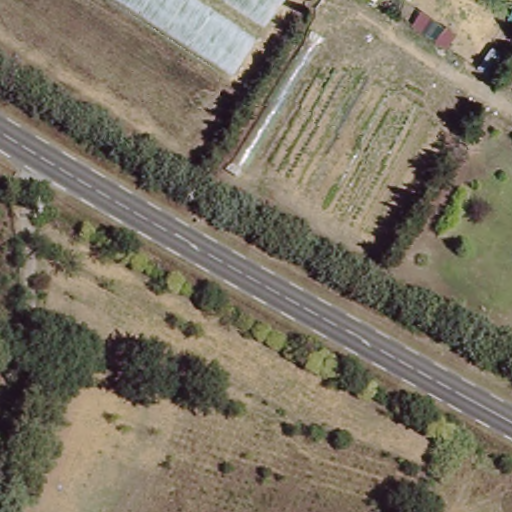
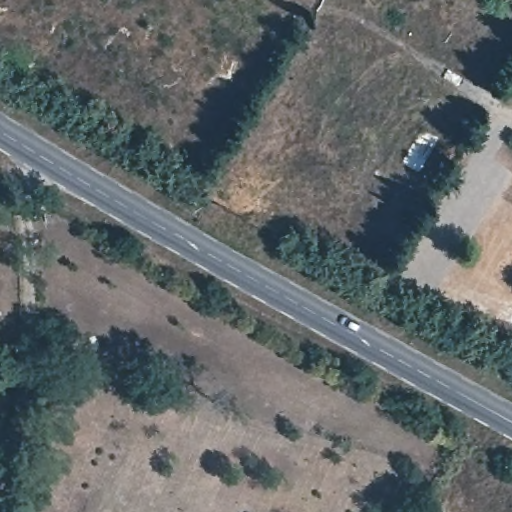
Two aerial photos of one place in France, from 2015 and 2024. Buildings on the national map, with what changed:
demolished [(111,0),(283,0),(232,79),(111,0)]

